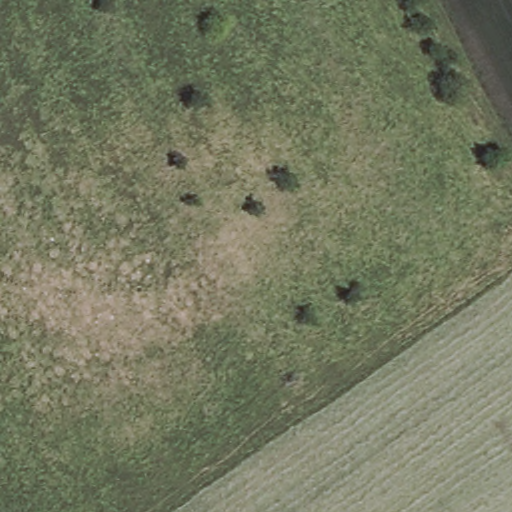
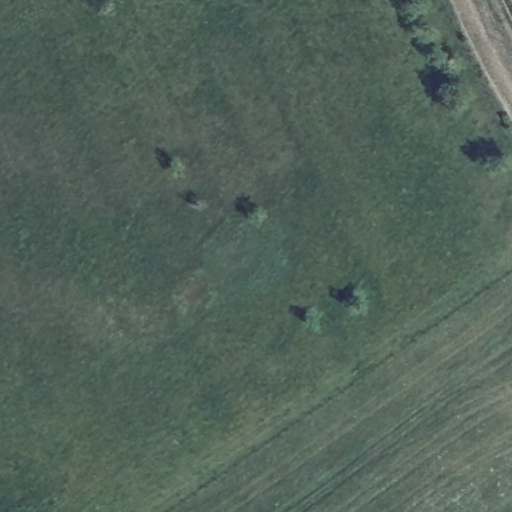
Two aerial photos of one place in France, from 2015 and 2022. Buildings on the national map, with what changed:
[]

